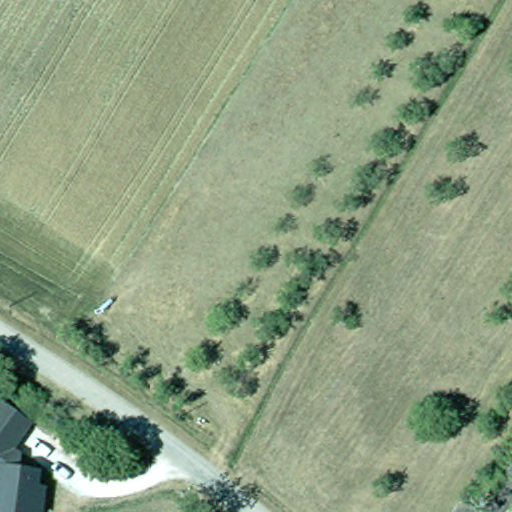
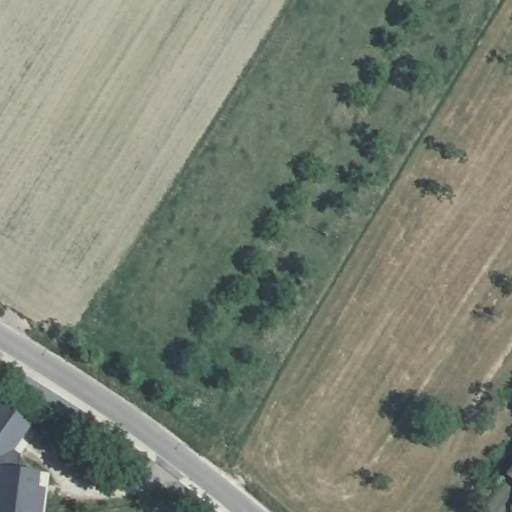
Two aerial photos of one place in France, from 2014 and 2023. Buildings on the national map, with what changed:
unchanged [(31,419),(14,449),(21,453),(21,470),(35,471),(35,488),(40,488),(40,507),(30,507),(30,512),(0,512),(0,504),(4,476),(0,474),(0,407),(3,402),(31,419)]
unchanged [(512,466),(512,472),(509,469),(512,466)]

